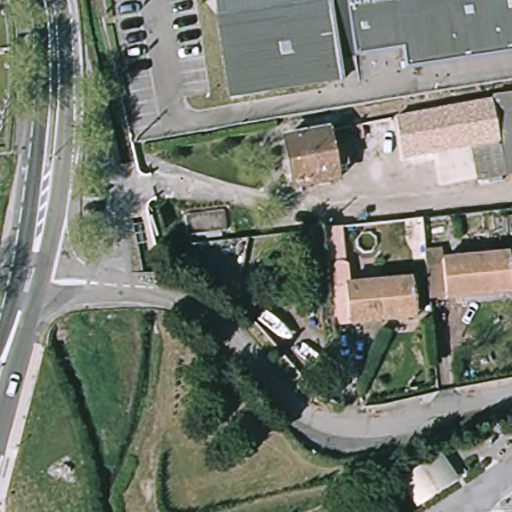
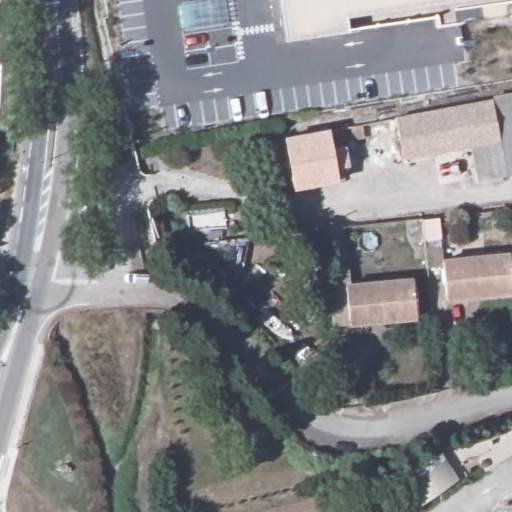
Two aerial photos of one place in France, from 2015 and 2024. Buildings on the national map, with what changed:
demolished [(220,0),(512,0),(512,61),(406,77),(404,61),(343,70),(345,87),(237,104),(220,0)]
new [(346,17),(347,31),(284,42),(277,0),(460,0),(346,17)]
unchanged [(492,101),(512,98),(512,172),(505,174),(492,101)]
unchanged [(478,178),(472,145),(437,152),(432,127),(354,141),(351,127),(492,101),(505,174),(478,178)]
unchanged [(330,130),(341,181),(298,188),(288,139),(330,130)]
unchanged [(331,328),(321,229),(345,226),(350,283),(345,284),(349,326),(331,328)]
unchanged [(457,296),(442,297),(438,255),(503,249),(507,284),(507,291),(457,296)]
unchanged [(364,325),(349,326),(345,284),(410,277),(413,313),(414,320),(364,325)]
unchanged [(414,504),(398,481),(440,455),(455,476),(414,504)]

